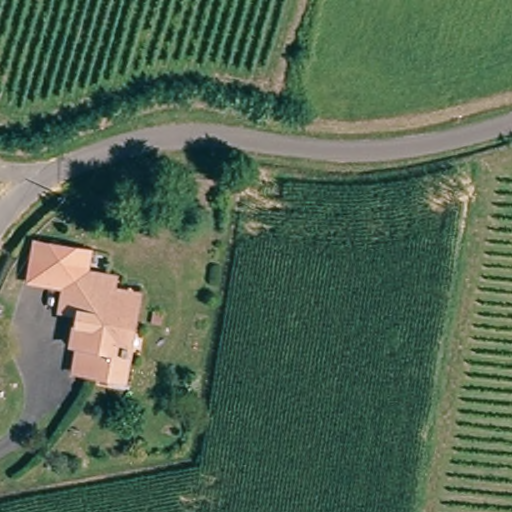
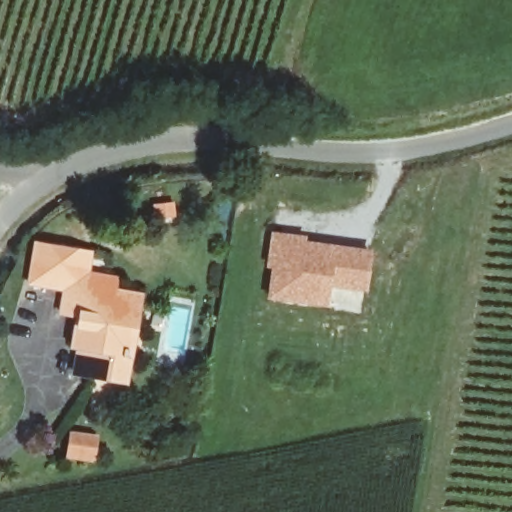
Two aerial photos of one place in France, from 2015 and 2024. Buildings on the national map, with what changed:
new [(270,230),(307,235),(306,239),(373,250),(367,294),(330,289),(328,308),(265,300),(268,268),(264,268),(270,230)]
unchanged [(112,376),(114,367),(105,373),(77,370),(81,341),(75,324),(80,323),(82,315),(57,311),(62,290),(26,282),(34,245),(69,252),(86,255),(85,271),(112,276),(117,287),(142,292),(130,350),(124,378),(112,376)]

